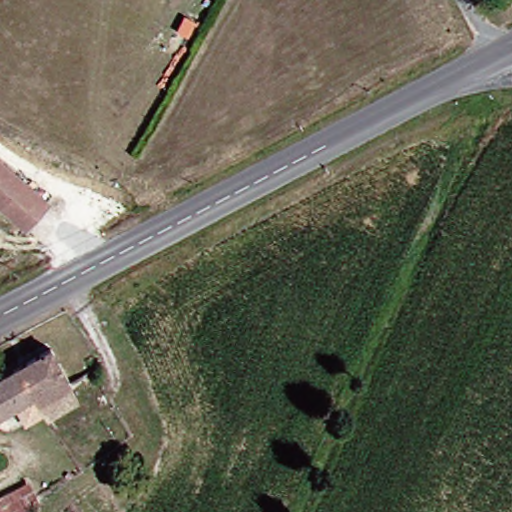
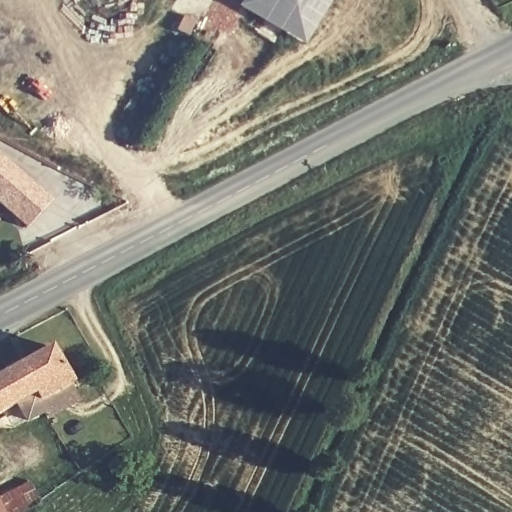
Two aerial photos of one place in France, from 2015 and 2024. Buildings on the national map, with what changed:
new [(239,7),(243,0),(333,0),(305,46),(239,7)]
unchanged [(25,226),(0,206),(0,159),(47,201),(25,226)]
unchanged [(15,421),(0,418),(0,376),(54,346),(74,380),(83,397),(52,414),(46,403),(29,412),(15,421)]
unchanged [(3,445),(12,459),(0,467),(0,447),(3,445)]
unchanged [(22,512),(3,512),(0,507),(0,467),(12,459),(34,506),(22,512)]
unchanged [(3,512),(0,512),(0,507),(3,512)]

